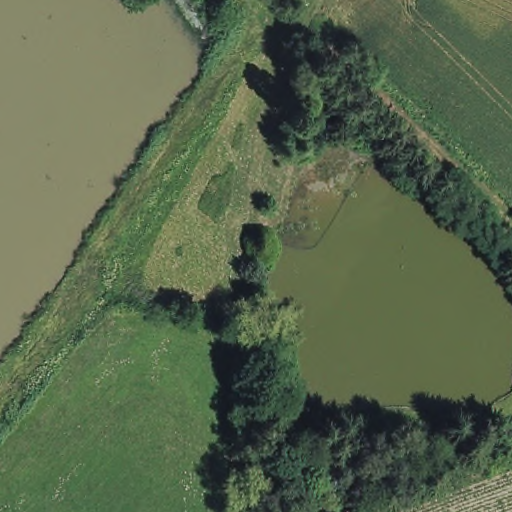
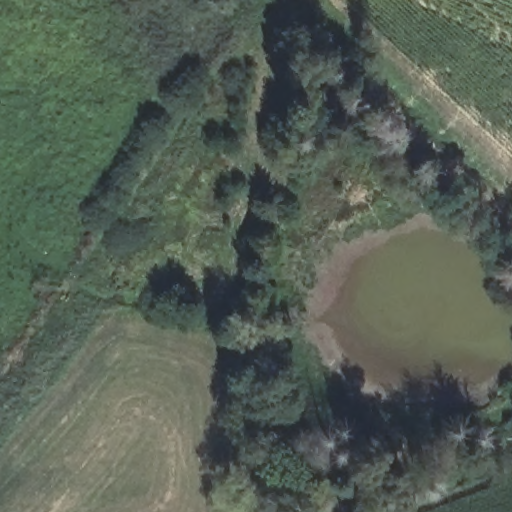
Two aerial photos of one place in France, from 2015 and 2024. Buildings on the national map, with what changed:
[]

